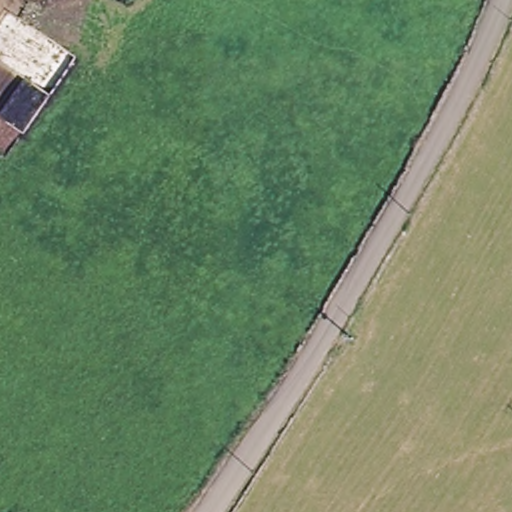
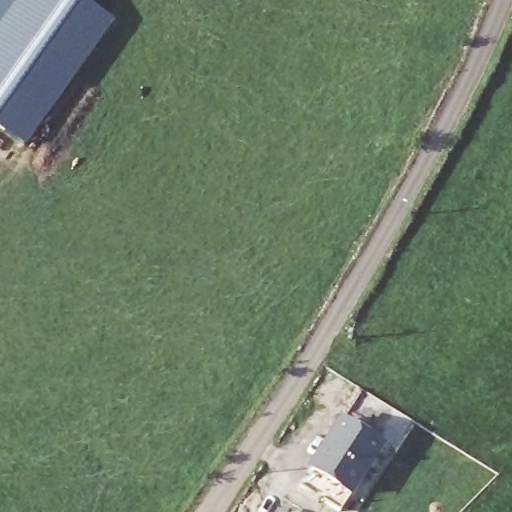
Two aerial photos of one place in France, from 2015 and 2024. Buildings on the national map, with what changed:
new [(85,0),(115,20),(26,146),(0,128),(0,0),(85,0)]
new [(379,446),(336,510),(296,483),(338,419),(379,446)]
new [(278,510),(282,512),(276,512),(278,510)]

